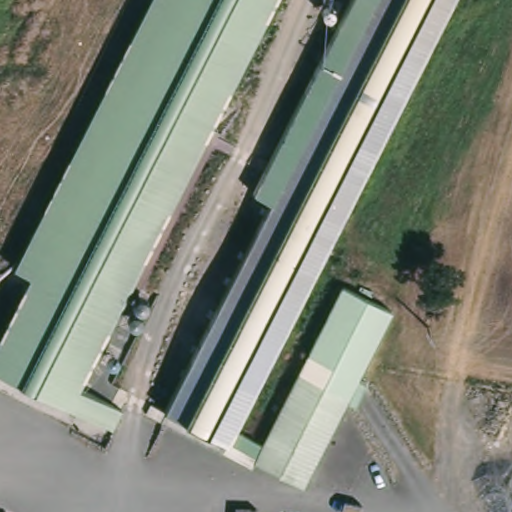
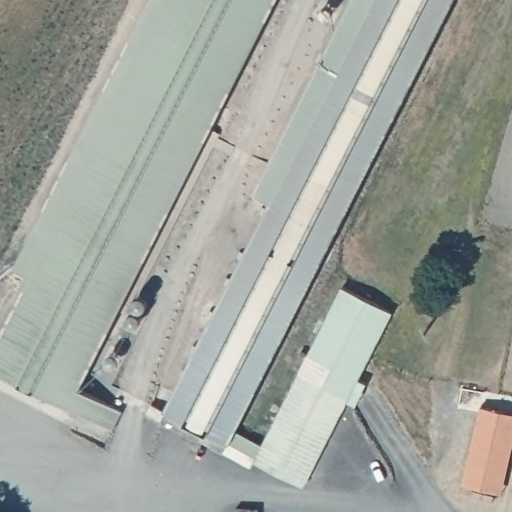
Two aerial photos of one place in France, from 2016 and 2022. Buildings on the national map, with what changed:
unchanged [(125,429),(0,368),(0,361),(40,277),(22,268),(150,0),(274,0),(89,388),(135,410),(125,429)]
unchanged [(245,433),(241,444),(239,446),(179,415),(377,0),(451,0),(246,431),(245,433)]
unchanged [(276,445),(322,354),(355,286),(404,311),(371,378),(379,383),(367,406),(359,401),(317,486),(268,461),(276,445)]
new [(481,406),(512,413),(512,447),(502,492),(463,483),(481,406)]
unchanged [(264,469),(174,425),(159,418),(164,408),(179,415),(239,446),(241,444),(245,433),(246,431),(276,445),(268,461),(264,469)]

